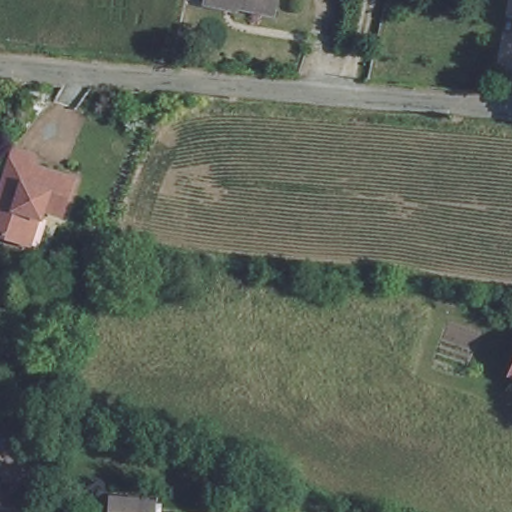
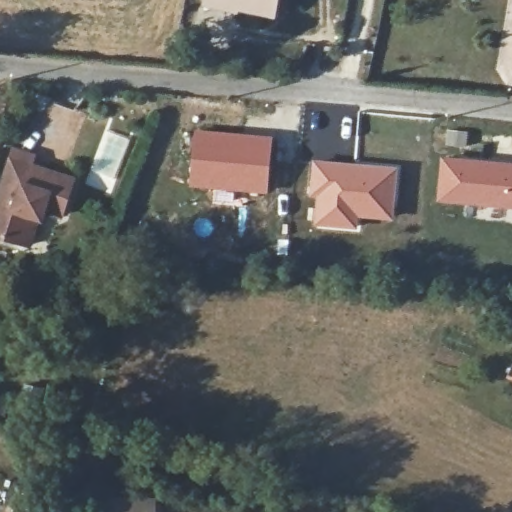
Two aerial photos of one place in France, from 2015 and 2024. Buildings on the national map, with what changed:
unchanged [(203,0),(277,0),(273,17),(236,10),(203,4),(203,0)]
new [(194,129),(273,135),(268,194),(234,191),(233,203),(212,202),(213,190),(188,186),(194,129)]
unchanged [(21,243),(0,236),(0,182),(12,148),(30,155),(27,164),(69,178),(57,215),(41,209),(38,217),(36,217),(26,245),(21,243)]
new [(512,162),(512,209),(436,202),(440,155),(512,162)]
new [(312,158),(399,166),(394,220),(360,217),(358,230),(312,225),(314,199),(308,198),(312,158)]
unchanged [(512,370),(512,374),(511,373),(512,370)]
unchanged [(11,512),(0,512),(0,494),(15,497),(11,512)]
unchanged [(112,512),(112,500),(155,501),(155,512),(112,512)]

